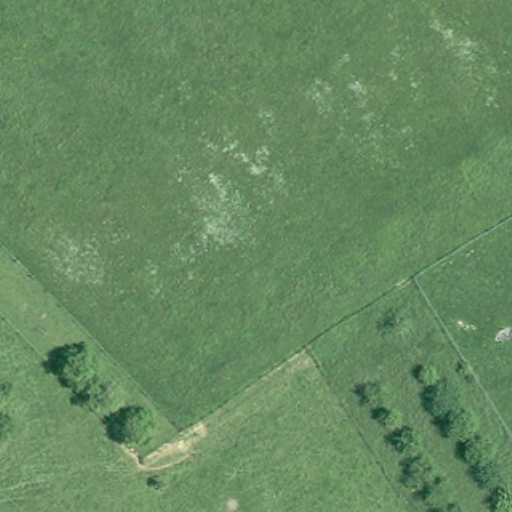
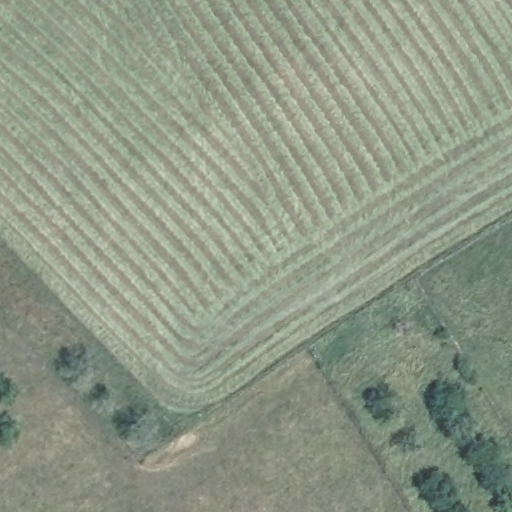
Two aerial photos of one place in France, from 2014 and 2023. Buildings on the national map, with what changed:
[]

